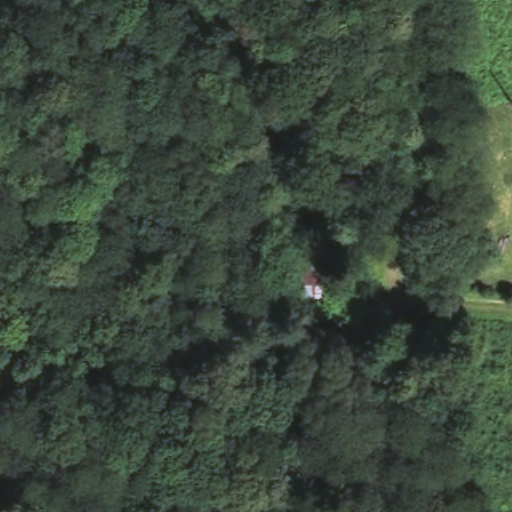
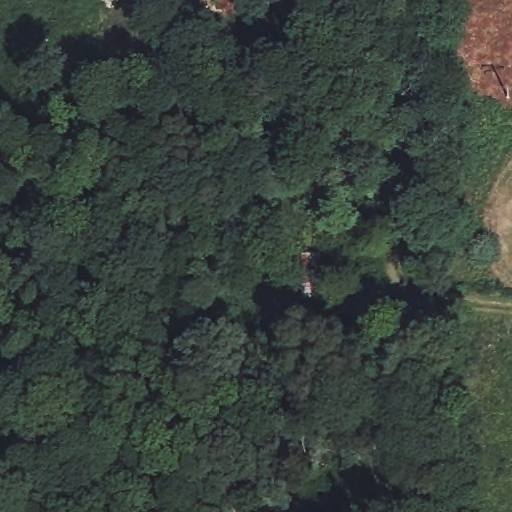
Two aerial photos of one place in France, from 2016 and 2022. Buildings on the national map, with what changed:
unchanged [(302,254),(330,255),(330,276),(330,298),(302,298),(302,254)]

